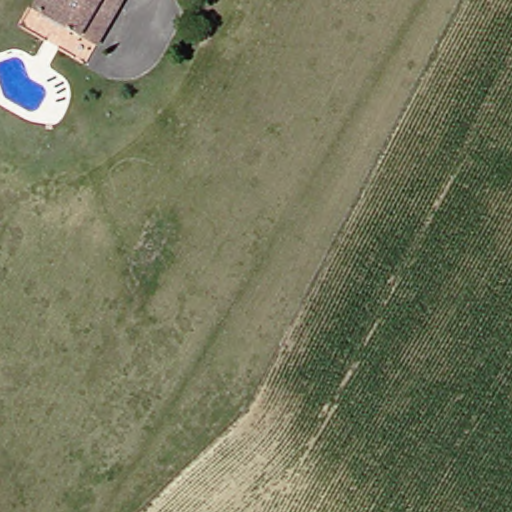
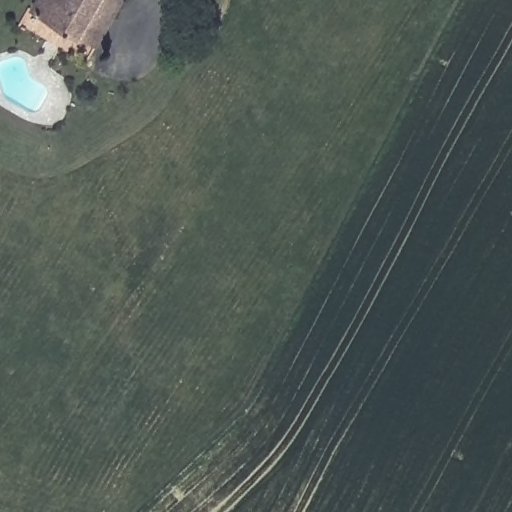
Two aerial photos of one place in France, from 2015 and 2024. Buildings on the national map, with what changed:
unchanged [(86,36),(40,8),(45,0),(126,0),(100,46),(86,36)]

